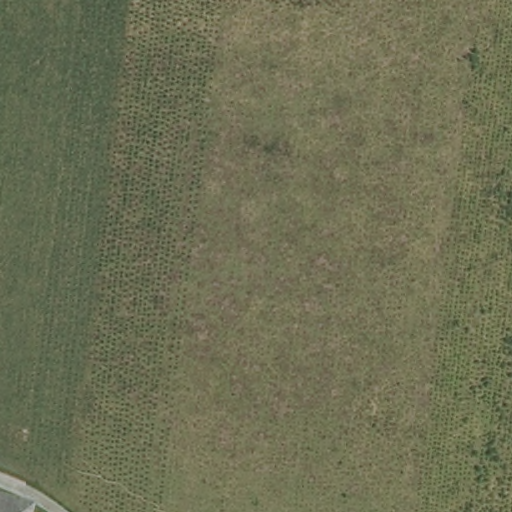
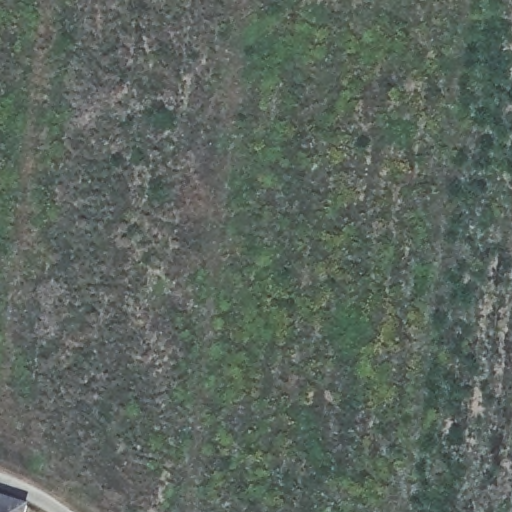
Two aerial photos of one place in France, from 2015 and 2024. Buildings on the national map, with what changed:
unchanged [(27,512),(0,512),(0,504),(26,512),(27,512)]

